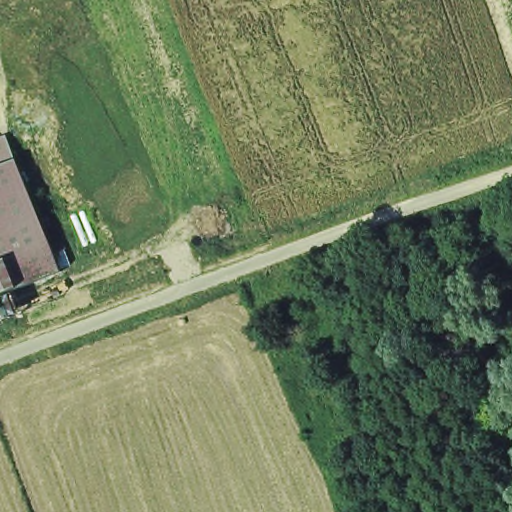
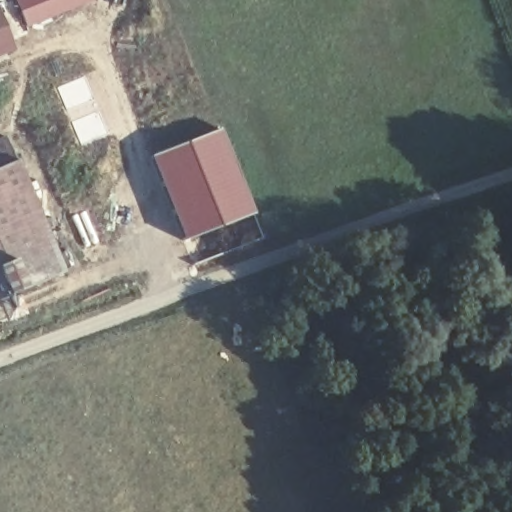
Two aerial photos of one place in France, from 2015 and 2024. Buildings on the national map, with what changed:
new [(98,1),(31,27),(18,1),(20,0),(98,0),(98,1)]
new [(0,10),(17,51),(0,57),(0,10)]
new [(222,127),(256,214),(182,242),(164,201),(147,156),(222,127)]
unchanged [(0,139),(7,136),(17,161),(64,274),(0,298),(0,139)]

